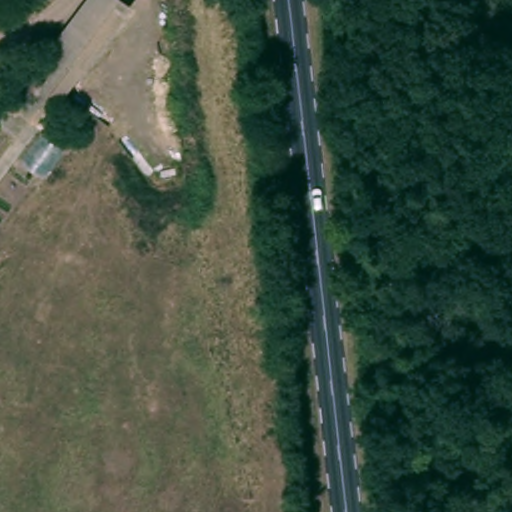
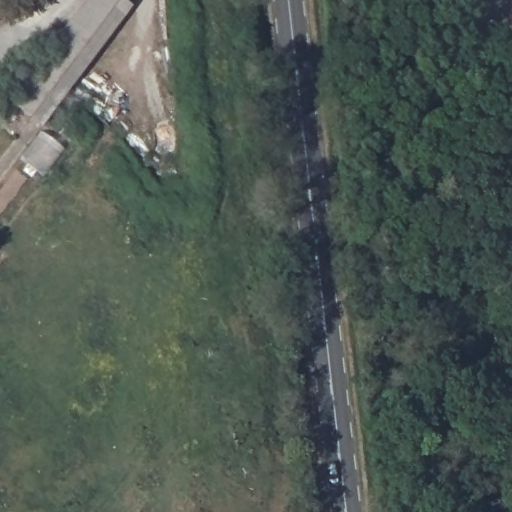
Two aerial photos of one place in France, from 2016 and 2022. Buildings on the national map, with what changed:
unchanged [(12,97),(88,0),(125,0),(134,7),(45,126),(12,97)]

